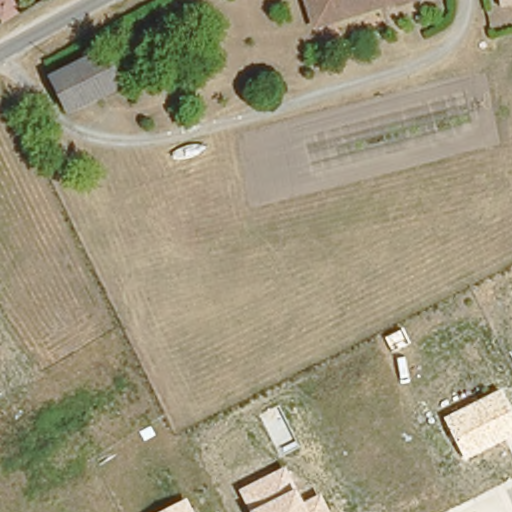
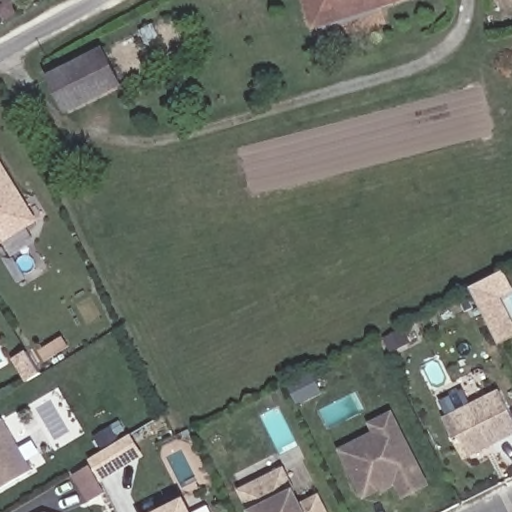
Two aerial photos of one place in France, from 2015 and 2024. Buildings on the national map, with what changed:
unchanged [(385,0),(315,22),(314,21),(314,20),(307,0),(385,0)]
new [(500,0),(512,0),(512,4),(501,6),(500,0)]
unchanged [(106,48),(122,85),(69,110),(50,72),(106,48)]
new [(39,221),(0,245),(0,159),(39,221)]
new [(512,320),(512,338),(500,345),(471,287),(504,271),(512,286),(512,292),(501,297),(512,320)]
unchanged [(446,417),(502,389),(512,408),(512,436),(465,461),(446,417)]
new [(430,484),(431,485),(403,500),(394,482),(363,501),(337,448),(373,432),(368,423),(392,411),(430,484)]
new [(0,489),(0,420),(3,418),(33,469),(0,489)]
new [(102,480),(101,479),(90,459),(102,452),(102,451),(94,437),(110,427),(118,441),(131,433),(144,457),(102,480)]
new [(89,463),(105,491),(89,500),(72,473),(89,463)]
unchanged [(239,490),(285,467),(305,503),(320,495),(329,512),(250,512),(239,490)]
unchanged [(186,497),(194,512),(157,512),(186,497)]

